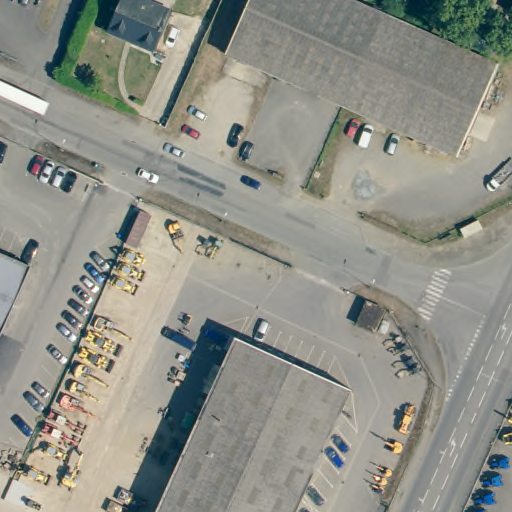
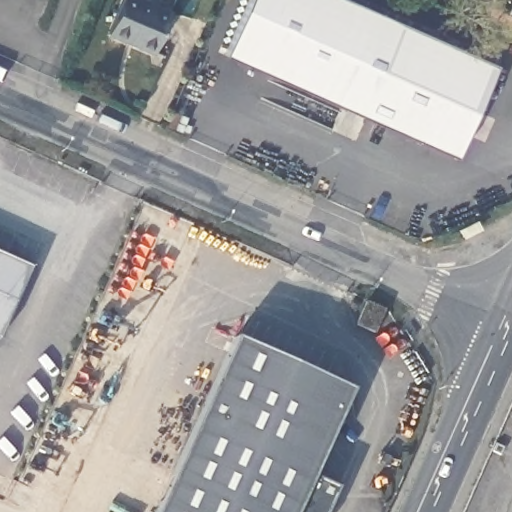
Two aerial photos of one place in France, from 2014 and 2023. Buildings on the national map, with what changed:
unchanged [(170,9),(155,51),(108,32),(122,0),(148,0),(170,9)]
unchanged [(500,66),(459,156),(228,51),(251,0),(353,0),(500,66)]
unchanged [(512,9),(512,11),(511,11),(512,9)]
unchanged [(29,266),(0,328),(0,253),(29,266)]
unchanged [(375,330),(358,322),(366,297),(385,305),(375,330)]
unchanged [(159,512),(238,338),(350,391),(294,512),(159,512)]

